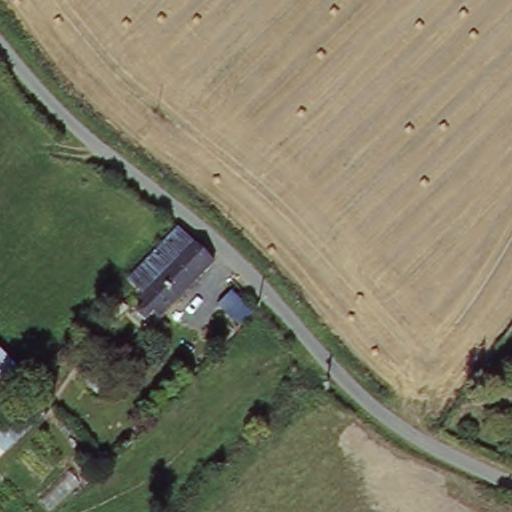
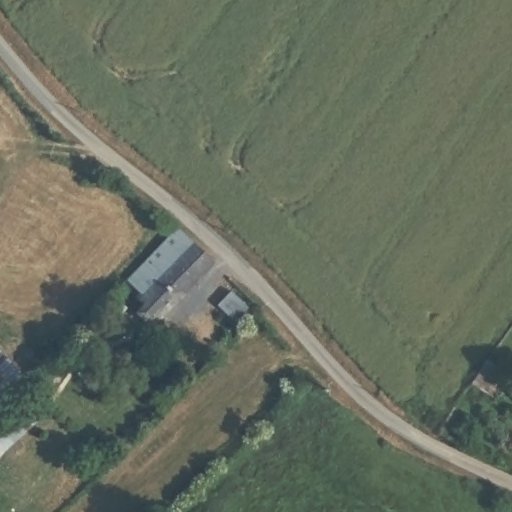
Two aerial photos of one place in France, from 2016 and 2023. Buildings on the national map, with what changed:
unchanged [(188,241),(191,243),(156,281),(176,300),(161,318),(129,290),(180,233),(188,241)]
unchanged [(212,262),(176,300),(156,281),(191,243),(212,262)]
unchanged [(0,398),(0,354),(23,375),(0,398)]

